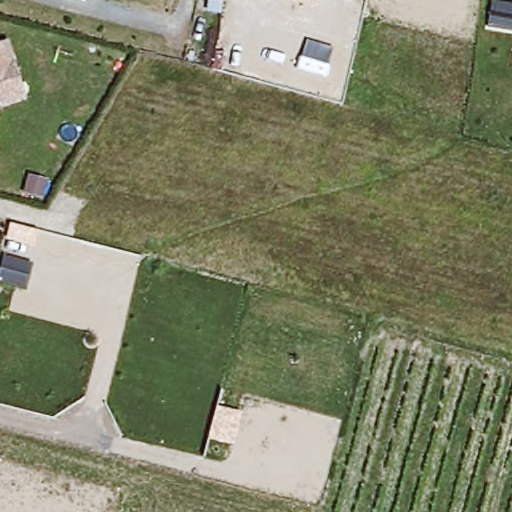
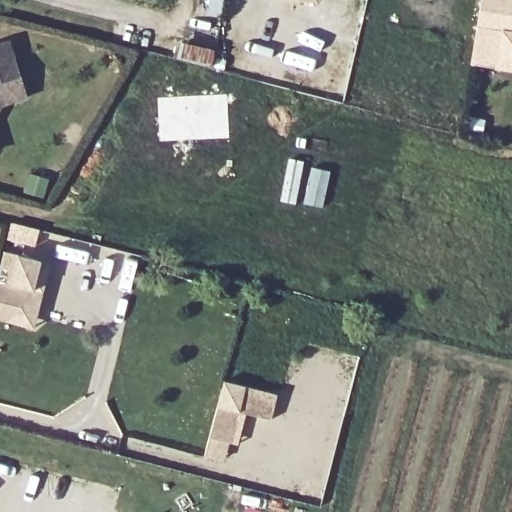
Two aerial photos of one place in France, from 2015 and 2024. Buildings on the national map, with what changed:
unchanged [(318,3),(306,0),(319,0),(318,3)]
new [(478,0),(512,0),(512,73),(468,65),(478,0)]
new [(22,325),(0,319),(0,263),(3,250),(40,260),(32,290),(32,291),(41,293),(32,328),(22,325)]
new [(225,402),(230,382),(277,395),(270,421),(243,413),(234,445),(230,444),(225,462),(205,456),(220,401),(225,402)]

